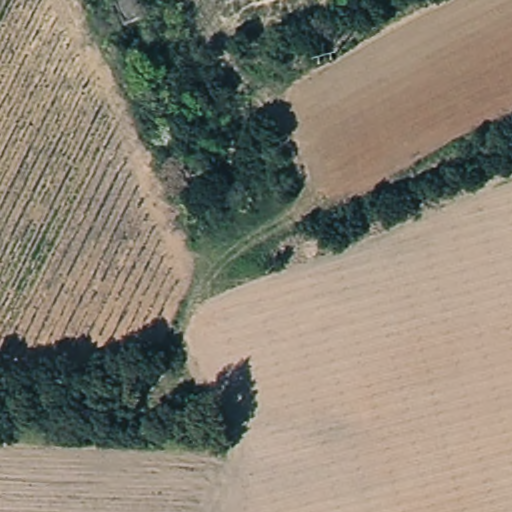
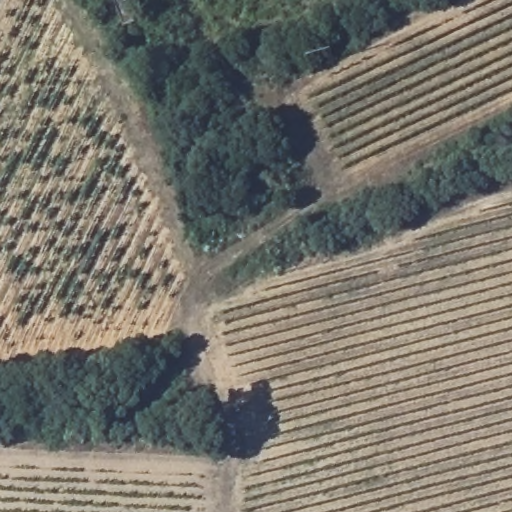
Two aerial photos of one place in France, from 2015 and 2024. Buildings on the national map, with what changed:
unchanged [(121,27),(120,20),(113,0),(135,0),(140,14),(143,21),(121,27)]

